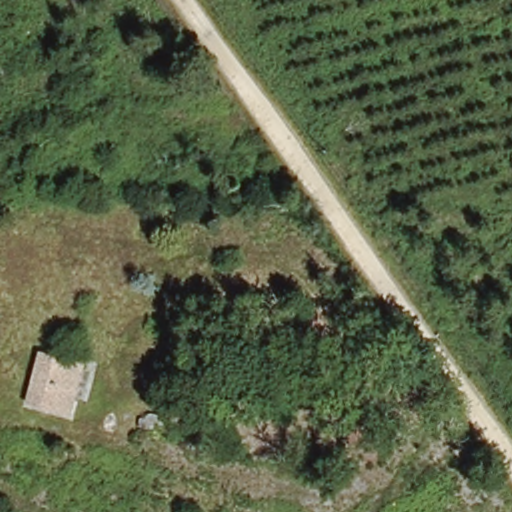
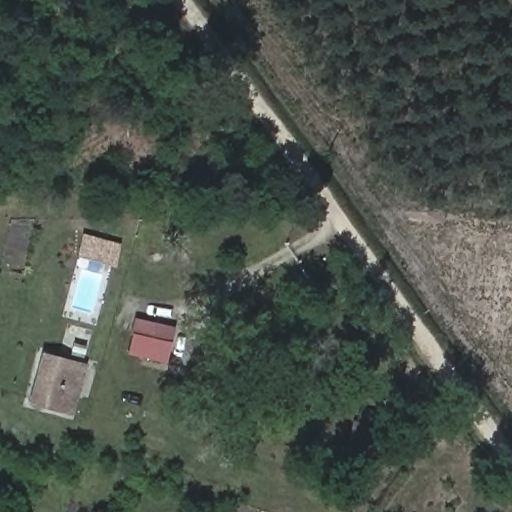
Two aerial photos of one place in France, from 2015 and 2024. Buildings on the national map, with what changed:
new [(167,363),(126,354),(134,317),(175,326),(167,363)]
unchanged [(74,421),(24,403),(40,353),(87,364),(74,421)]

